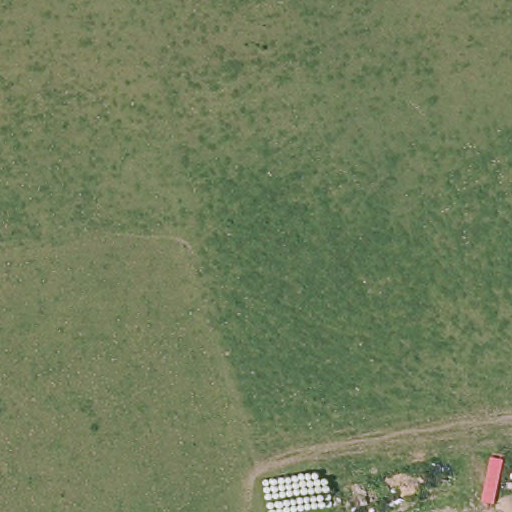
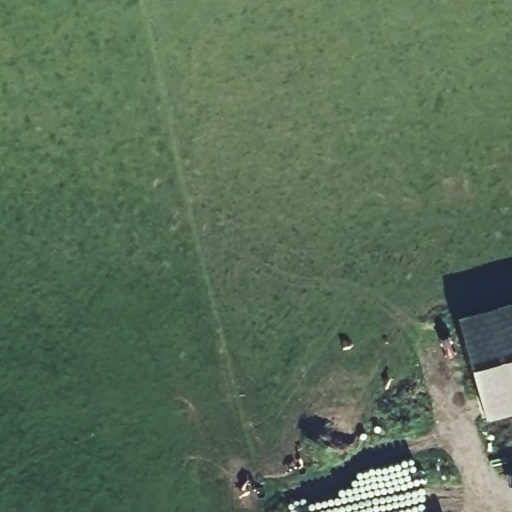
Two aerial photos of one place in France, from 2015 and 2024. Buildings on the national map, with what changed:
new [(459,318),(512,303),(512,412),(487,420),(459,318)]

